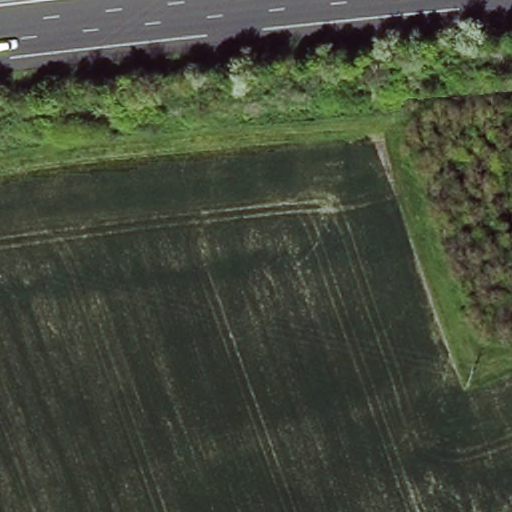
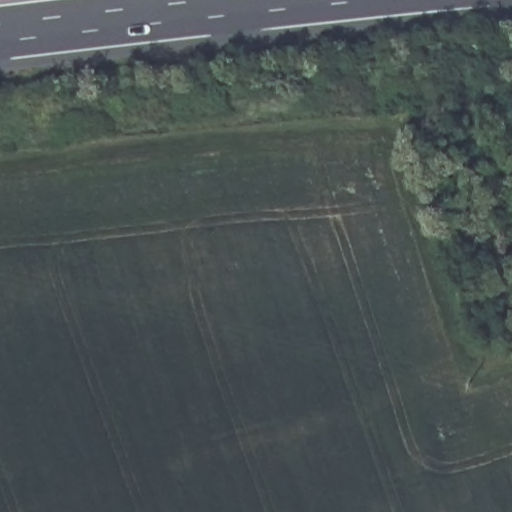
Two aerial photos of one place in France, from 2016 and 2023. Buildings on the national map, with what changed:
[]

